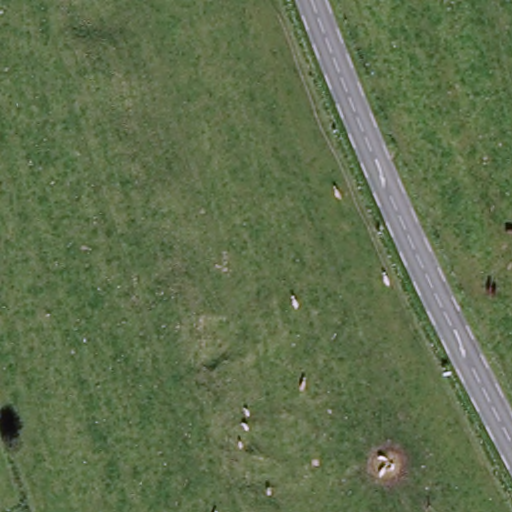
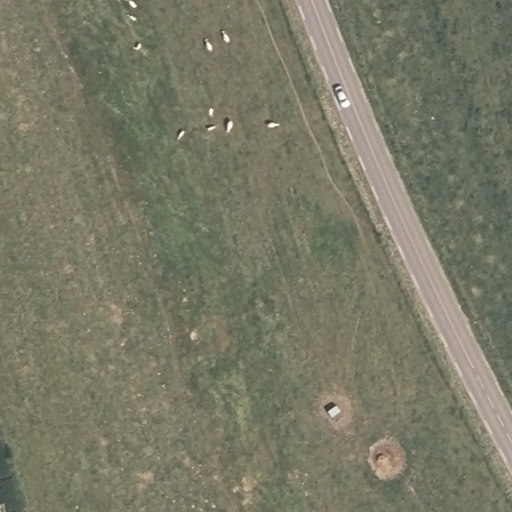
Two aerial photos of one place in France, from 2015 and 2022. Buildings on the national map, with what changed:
[]

